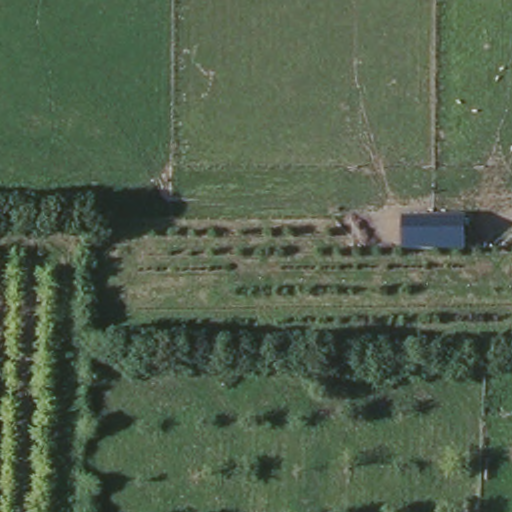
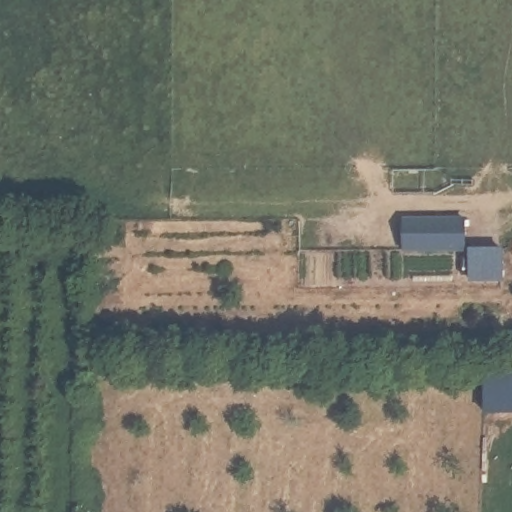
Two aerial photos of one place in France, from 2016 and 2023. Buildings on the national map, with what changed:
unchanged [(466,252),(404,252),(403,216),(465,216),(466,252)]
new [(499,250),(499,281),(469,281),(469,249),(499,250)]

